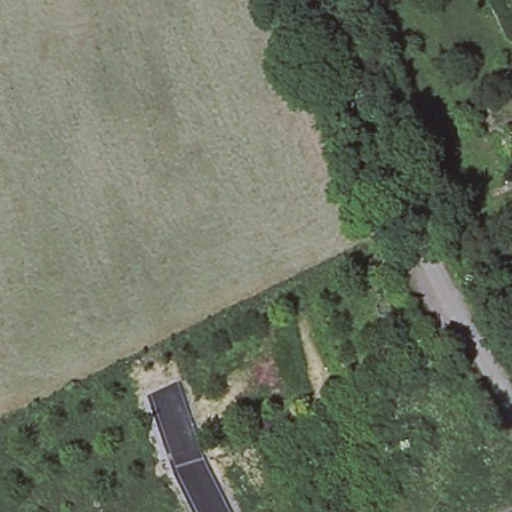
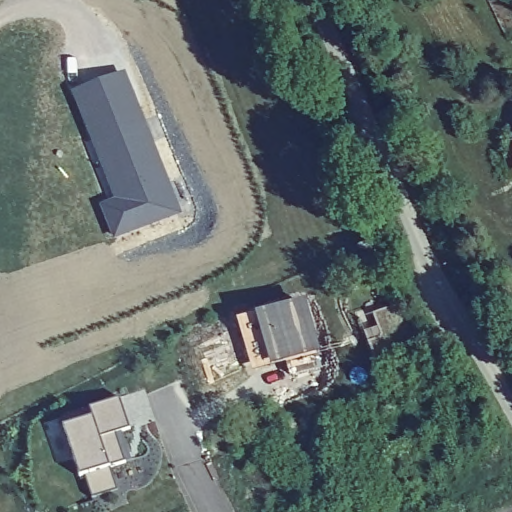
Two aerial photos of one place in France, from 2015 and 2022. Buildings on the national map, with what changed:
new [(125,70),(180,212),(114,237),(101,204),(114,199),(70,90),(125,70)]
new [(410,300),(430,347),(380,368),(371,345),(380,338),(375,315),(410,300)]
new [(128,428),(122,430),(131,460),(110,466),(116,490),(92,497),(85,475),(80,476),(64,427),(93,419),(90,409),(120,398),(128,428)]

